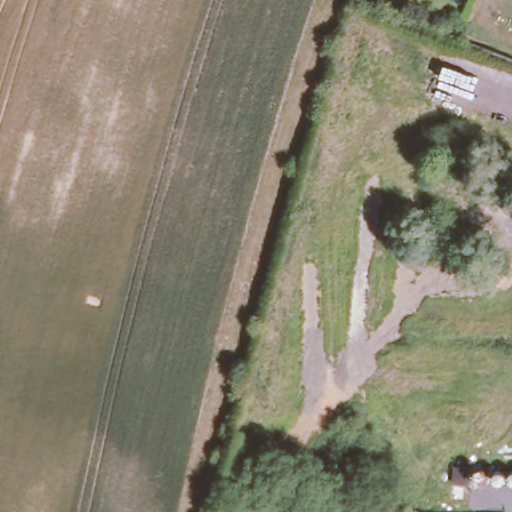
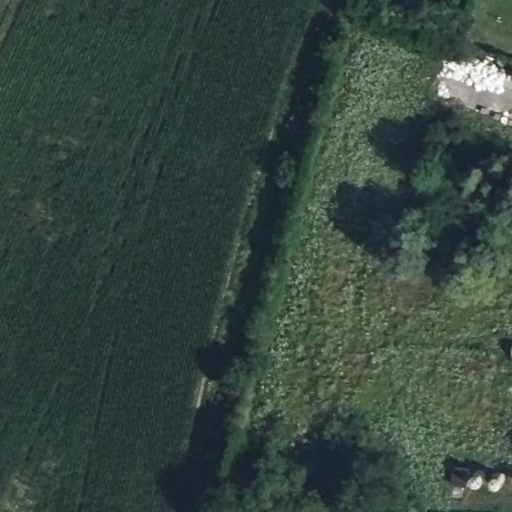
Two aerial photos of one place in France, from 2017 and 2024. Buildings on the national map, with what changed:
unchanged [(470,469),(469,485),(453,484),(454,467),(470,469)]

